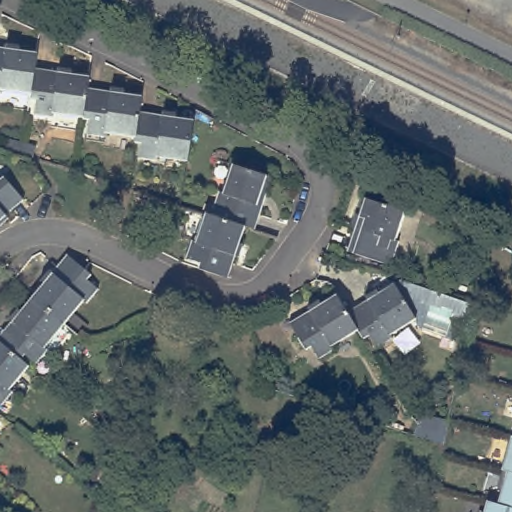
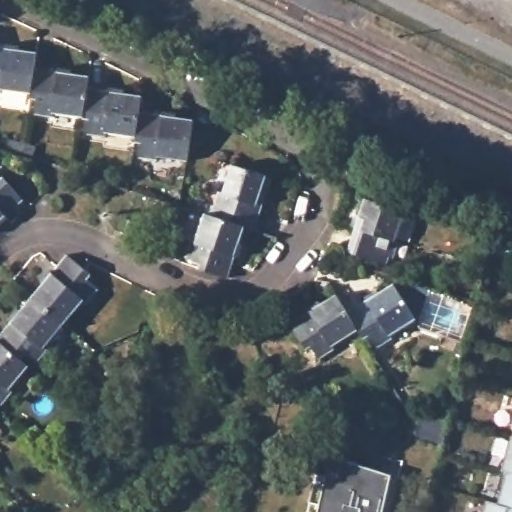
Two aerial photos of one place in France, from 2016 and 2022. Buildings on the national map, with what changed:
unchanged [(30,94),(0,90),(0,92),(0,47),(5,48),(5,45),(19,47),(18,50),(36,53),(34,68),(30,94)]
unchanged [(82,118),(52,113),(51,117),(33,115),(36,100),(29,99),(30,94),(34,68),(57,72),(57,68),(71,70),(70,74),(88,76),(86,88),(82,118)]
unchanged [(134,138),(104,133),(104,138),(86,135),(88,120),(81,119),(82,118),(86,88),(110,92),(110,88),(123,90),(123,94),(141,96),(138,112),(134,138)]
unchanged [(162,115),(162,112),(175,114),(176,117),(193,120),(186,161),(157,157),(156,161),(138,158),(141,144),(134,143),(134,138),(138,112),(162,115)]
unchanged [(208,204),(213,206),(218,192),(222,193),(231,164),(272,178),(255,230),(245,227),(204,213),(208,204)]
unchanged [(3,176),(23,200),(6,216),(8,219),(0,226),(0,179),(3,176)]
unchanged [(354,228),(351,226),(355,214),(358,215),(364,198),(404,211),(394,240),(399,241),(393,259),(389,258),(386,265),(346,252),(354,228)]
unchanged [(197,268),(199,262),(185,258),(191,240),(195,242),(204,215),(204,213),(245,227),(244,228),(239,243),(234,242),(230,254),(235,256),(232,265),(228,278),(197,268)]
unchanged [(43,288),(40,285),(49,275),(52,277),(57,271),(67,259),(84,275),(91,280),(87,285),(98,295),(86,309),(83,306),(63,329),(31,302),(43,288)]
unchanged [(369,336),(363,339),(358,330),(347,312),(367,300),(365,297),(376,290),(378,293),(393,283),(394,284),(402,280),(476,304),(468,336),(416,319),(389,335),(392,339),(376,349),(369,336)]
unchanged [(311,346),(305,349),(289,322),(309,310),(312,315),(323,308),(320,303),(336,294),(347,312),(358,330),(332,346),(334,349),(319,359),(311,346)]
unchanged [(45,352),(48,355),(37,369),(25,359),(21,364),(0,346),(0,338),(11,325),(8,323),(17,313),(20,315),(31,302),(63,329),(61,333),(70,341),(55,359),(46,351),(45,352)]
unchanged [(21,364),(28,371),(9,394),(13,397),(1,411),(0,410),(0,346),(21,364)]
unchanged [(444,445),(414,435),(418,419),(419,418),(420,417),(422,416),(424,416),(449,422),(444,445)]
unchanged [(502,470),(512,436),(512,473),(507,472),(502,470)]
new [(393,476),(384,512),(320,512),(331,457),(393,476)]
unchanged [(507,472),(512,473),(512,507),(498,504),(507,472)]
unchanged [(498,504),(512,507),(512,512),(484,512),(487,501),(498,504)]

